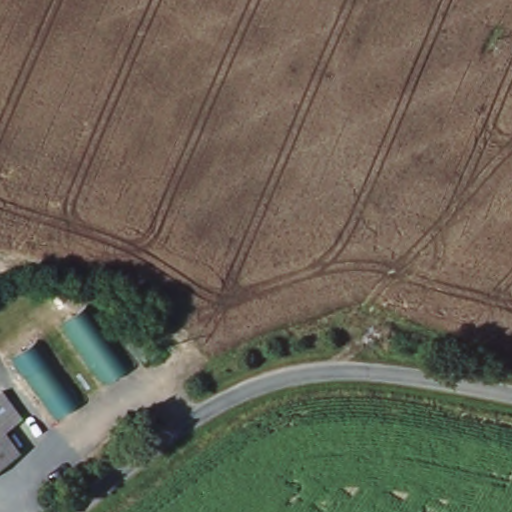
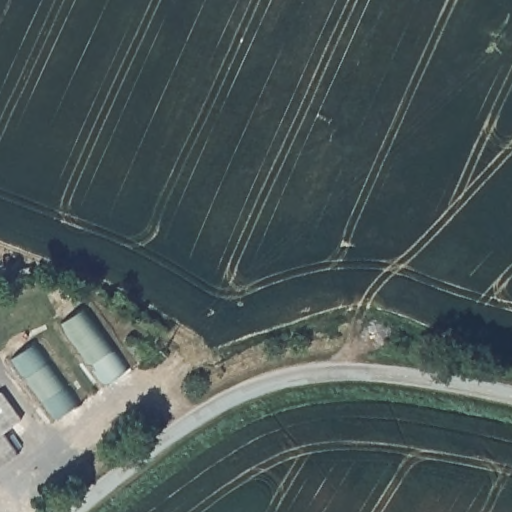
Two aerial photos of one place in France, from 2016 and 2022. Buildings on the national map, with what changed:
unchanged [(129,365),(107,382),(64,321),(85,305),(129,365)]
unchanged [(15,360),(35,345),(79,406),(75,409),(59,421),(35,388),(15,360)]
unchanged [(2,390),(25,420),(8,433),(22,452),(0,470),(0,391),(2,390)]

